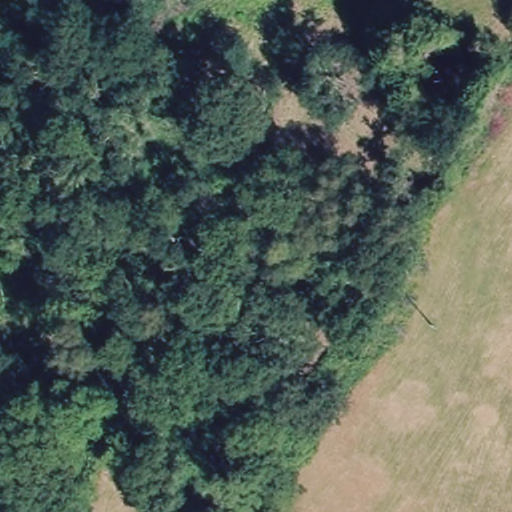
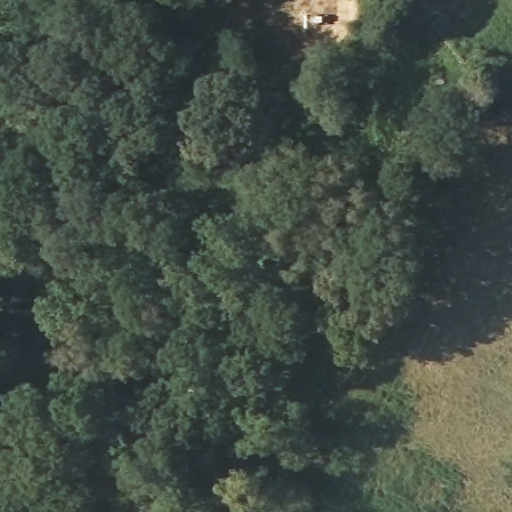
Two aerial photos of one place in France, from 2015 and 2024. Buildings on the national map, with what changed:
unchanged [(421,0),(426,0),(422,2),(421,0)]

